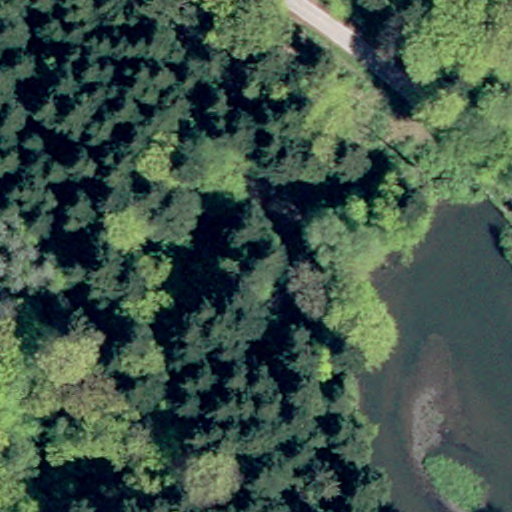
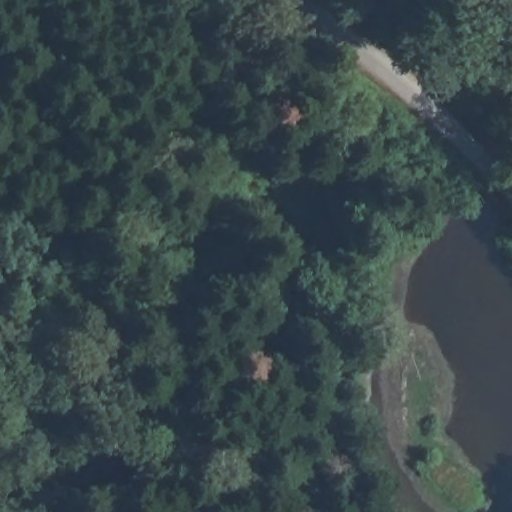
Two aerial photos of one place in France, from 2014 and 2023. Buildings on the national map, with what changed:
[]

